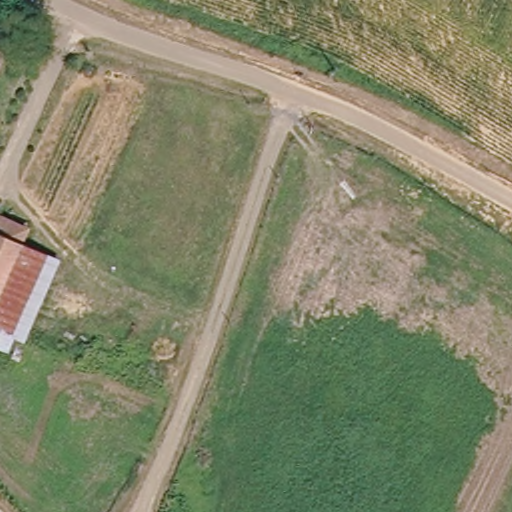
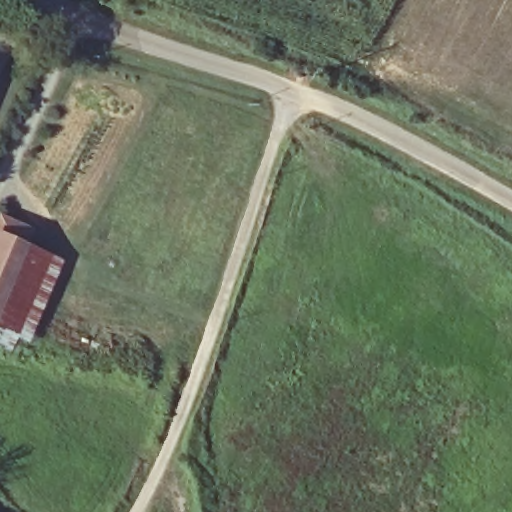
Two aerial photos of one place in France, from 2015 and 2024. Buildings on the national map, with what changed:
unchanged [(17,230),(15,236),(0,276),(0,224),(17,230)]
unchanged [(46,249),(10,349),(0,345),(0,276),(15,236),(46,249)]

